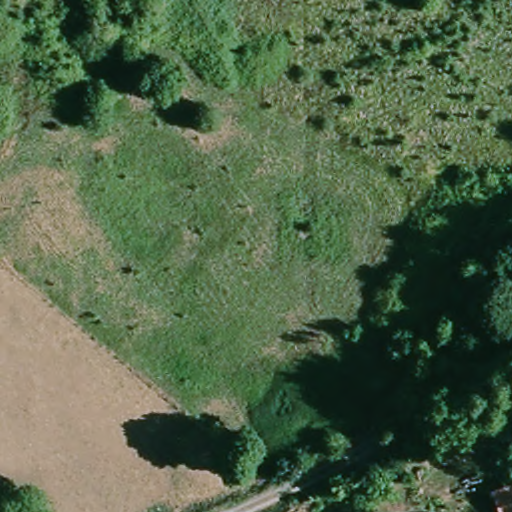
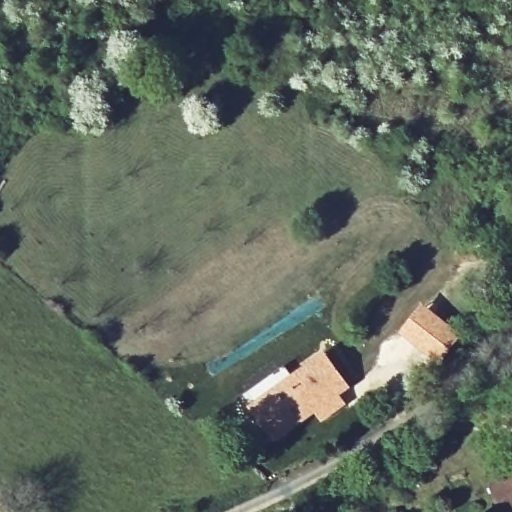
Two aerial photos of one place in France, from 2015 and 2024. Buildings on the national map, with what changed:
new [(421,302),(463,334),(438,366),(397,333),(421,302)]
new [(322,349),(351,388),(340,395),(346,405),(320,423),(313,415),(273,443),(246,406),(322,349)]
unchanged [(512,510),(507,512),(501,512),(491,486),(512,478),(512,510)]

